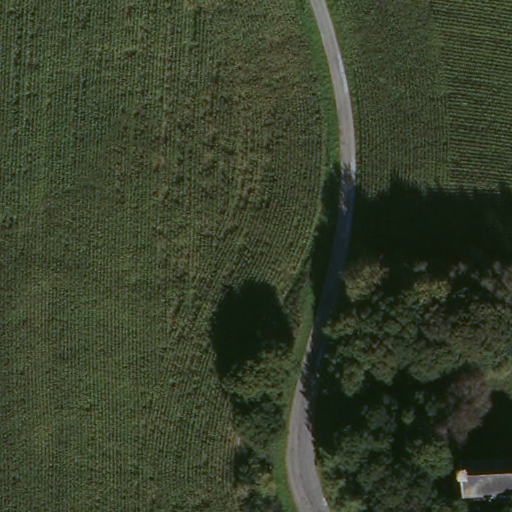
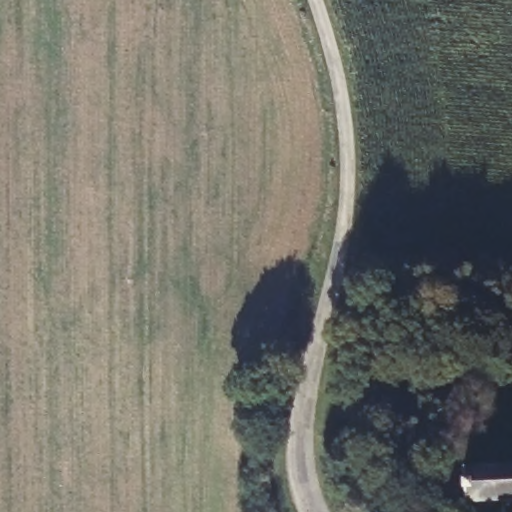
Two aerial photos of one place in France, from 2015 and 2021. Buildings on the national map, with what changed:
unchanged [(512,469),(512,508),(461,505),(462,467),(512,469)]

